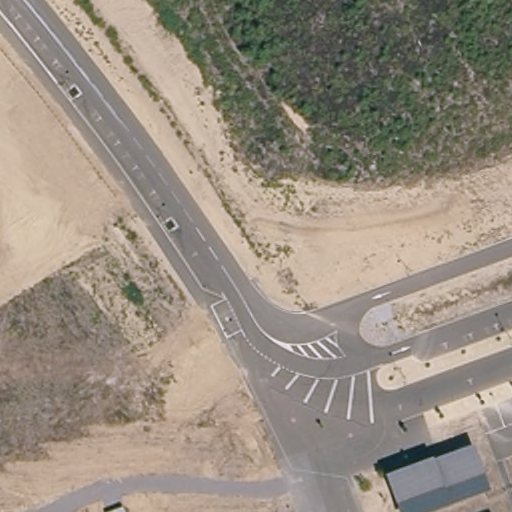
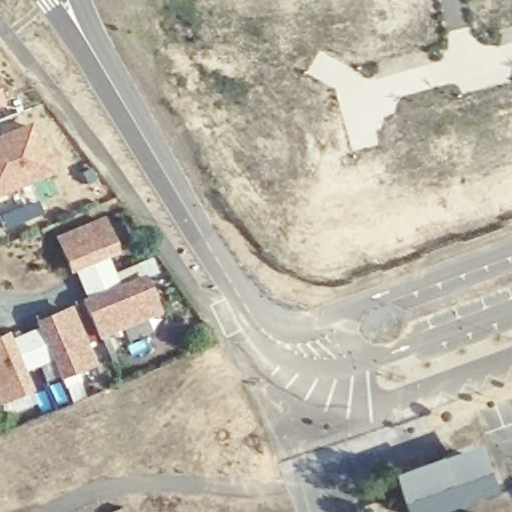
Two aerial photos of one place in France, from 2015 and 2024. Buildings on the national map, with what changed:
new [(2,107),(0,108),(0,100),(2,107)]
new [(29,123),(50,176),(0,197),(0,135),(29,123)]
new [(97,339),(79,300),(86,296),(75,270),(70,272),(54,237),(103,215),(117,252),(107,256),(118,283),(143,272),(159,312),(97,339)]
new [(60,379),(51,360),(24,372),(32,390),(0,404),(0,335),(8,331),(11,339),(37,328),(33,321),(69,305),(94,363),(60,379)]
unchanged [(476,457),(487,488),(424,512),(410,512),(400,485),(476,457)]

